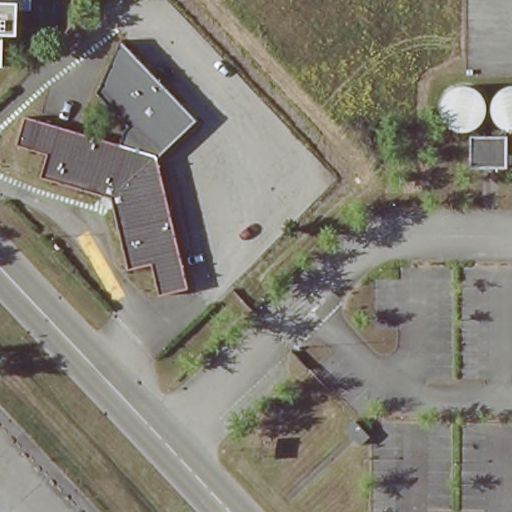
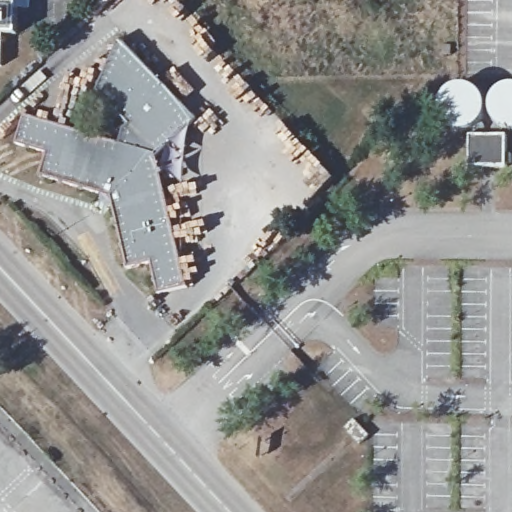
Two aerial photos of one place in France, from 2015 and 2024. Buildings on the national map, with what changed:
unchanged [(20,3),(14,2),(13,34),(0,34),(0,0),(20,0),(20,3)]
unchanged [(189,288),(162,293),(155,263),(131,267),(113,196),(45,173),(49,152),(18,140),(25,114),(123,145),(127,122),(98,93),(123,41),(197,120),(156,154),(189,288)]
unchanged [(509,139),(510,161),(474,162),(474,139),(509,139)]

